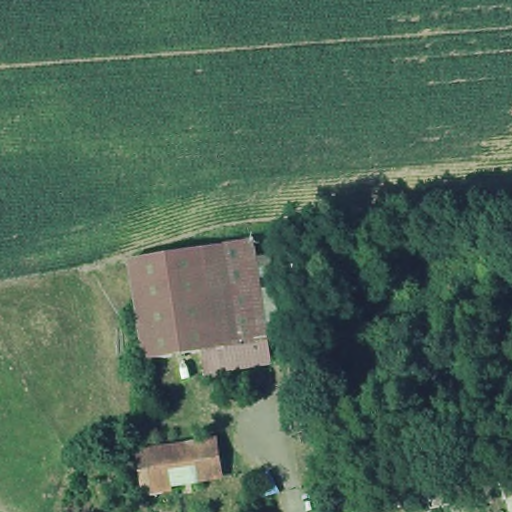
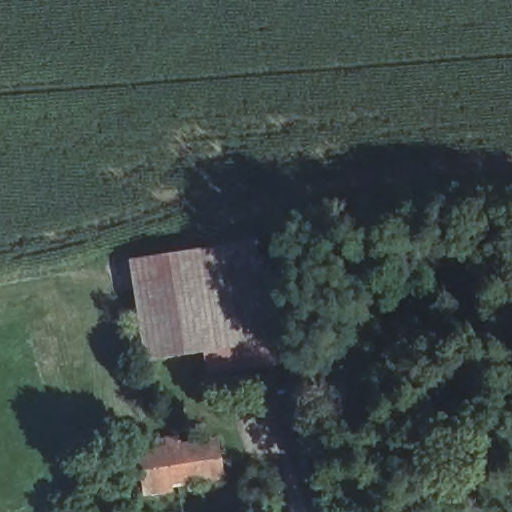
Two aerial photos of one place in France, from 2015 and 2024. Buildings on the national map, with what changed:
unchanged [(250,259),(265,257),(275,340),(263,340),(265,363),(215,373),(212,354),(133,363),(119,261),(248,242),(250,259)]
unchanged [(218,486),(144,499),(135,452),(210,437),(218,486)]

